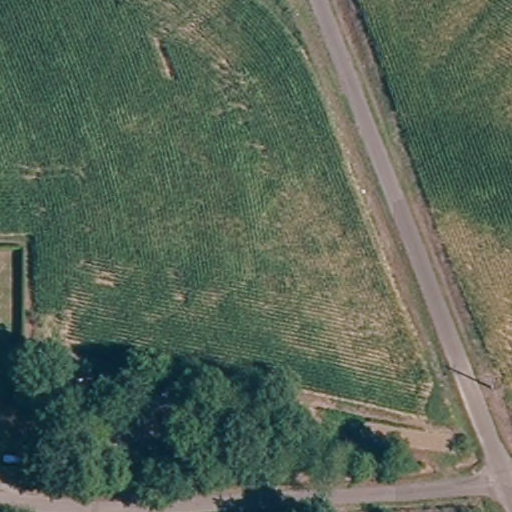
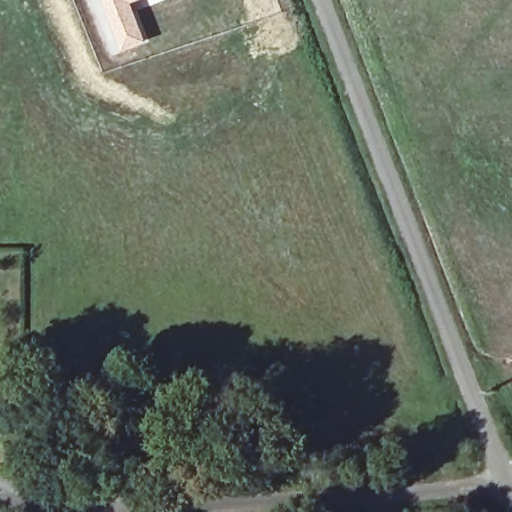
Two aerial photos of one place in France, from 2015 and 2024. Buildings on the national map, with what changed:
new [(148,40),(119,51),(99,0),(139,0),(133,3),(148,40)]

